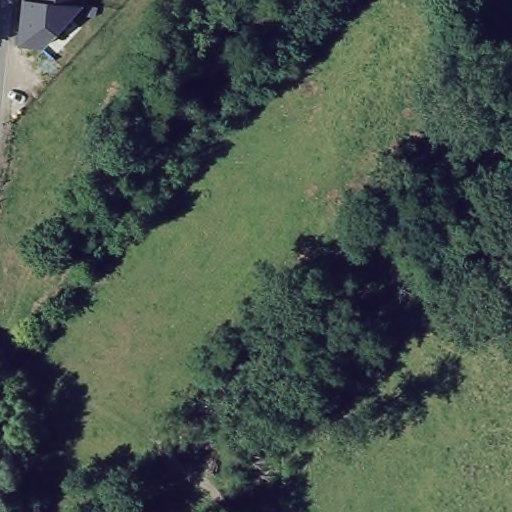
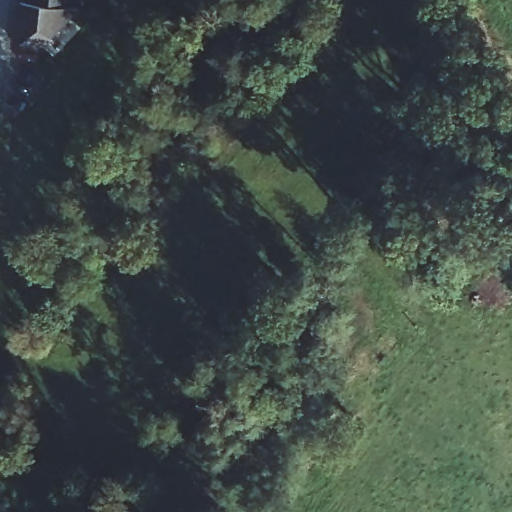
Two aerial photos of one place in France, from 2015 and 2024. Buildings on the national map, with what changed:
unchanged [(96,6),(95,16),(81,14),(44,49),(17,45),(22,0),(89,0),(89,4),(96,6)]

